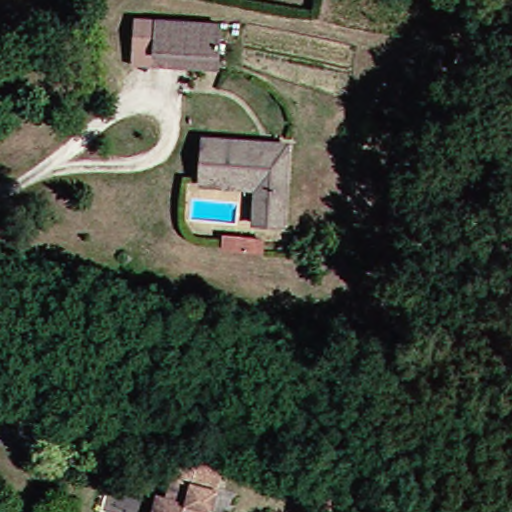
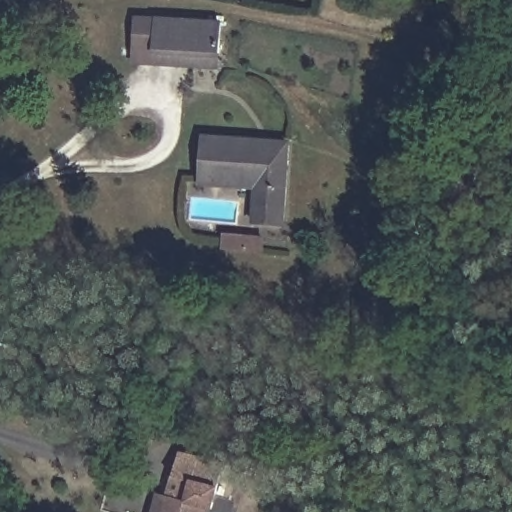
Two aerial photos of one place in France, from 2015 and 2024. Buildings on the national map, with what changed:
unchanged [(127,46),(131,15),(216,25),(212,56),(127,46)]
unchanged [(210,72),(125,63),(127,46),(212,56),(210,72)]
unchanged [(248,222),(251,188),(195,182),(199,138),(256,144),(285,147),(284,156),(275,225),(248,222)]
unchanged [(428,236),(417,235),(418,214),(430,215),(428,236)]
unchanged [(244,260),(233,259),(222,258),(223,244),(234,245),(245,247),(244,260)]
unchanged [(162,494),(180,500),(185,481),(166,475),(173,450),(219,462),(206,507),(201,506),(200,512),(146,512),(152,491),(162,494)]

